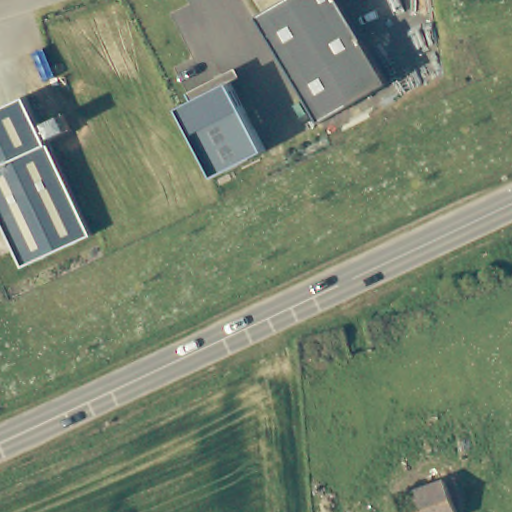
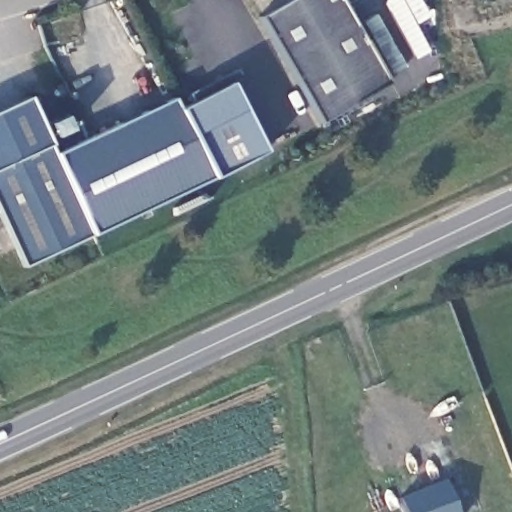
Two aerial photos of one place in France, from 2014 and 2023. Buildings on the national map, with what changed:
unchanged [(282,0),(341,0),(361,33),(390,81),(321,122),(257,15),(282,0)]
unchanged [(179,111),(192,104),(188,95),(223,77),(227,86),(230,85),(265,153),(214,178),(179,111)]
new [(212,174),(93,232),(88,232),(52,156),(172,98),(179,111),(212,174)]
unchanged [(22,271),(0,224),(0,115),(27,102),(91,238),(22,271)]
unchanged [(446,483),(458,512),(404,512),(400,501),(446,483)]

